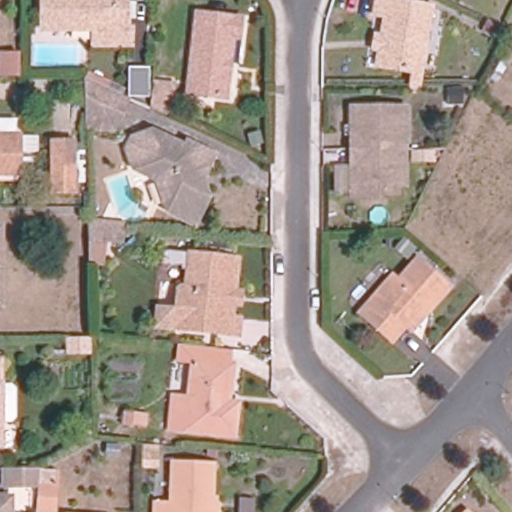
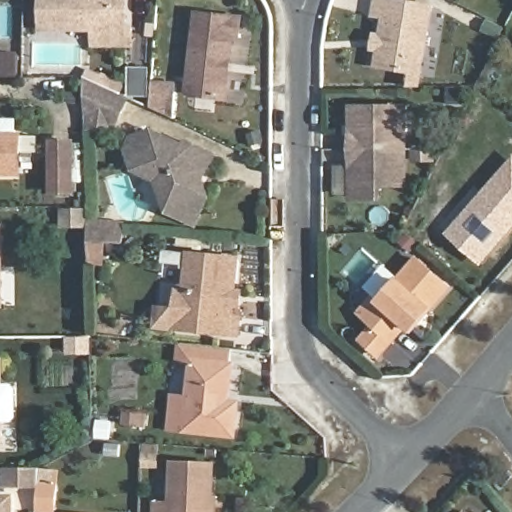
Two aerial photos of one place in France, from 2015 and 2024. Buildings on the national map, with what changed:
unchanged [(112,28),(122,28),(127,28),(127,45),(89,45),(90,29),(37,29),(37,0),(112,0),(112,28)]
unchanged [(410,87),(412,72),(377,66),(380,50),(382,36),(386,16),(375,15),(378,0),(395,0),(432,6),(421,74),(419,87),(410,87)]
unchanged [(231,64),(227,63),(226,71),(230,71),(226,98),(188,94),(197,14),(242,19),(240,38),(234,37),(231,64)]
unchanged [(488,20),(505,27),(498,39),(482,30),(488,20)]
unchanged [(4,77),(5,52),(24,52),(23,77),(4,77)]
unchanged [(86,130),(85,78),(130,99),(115,130),(86,130)]
unchanged [(152,83),(172,84),(170,117),(150,108),(152,83)]
unchanged [(352,150),(352,107),(406,107),(406,150),(352,150)]
unchanged [(0,174),(0,120),(16,120),(15,135),(21,136),(21,175),(0,174)]
unchanged [(170,206),(159,175),(136,164),(129,144),(134,134),(155,126),(186,141),(188,137),(215,150),(204,172),(200,170),(196,177),(204,180),(208,194),(201,208),(190,202),(186,210),(172,202),(170,206)]
unchanged [(48,194),(49,139),(75,140),(74,194),(48,194)]
unchanged [(406,185),(381,185),(381,198),(352,198),(352,150),(406,150),(406,185)]
new [(445,234),(512,156),(512,231),(481,266),(445,234)]
unchanged [(89,220),(125,224),(125,232),(124,242),(105,240),(104,262),(90,261),(89,229),(89,220)]
unchanged [(235,255),(230,286),(227,290),(227,296),(230,299),(228,312),(235,313),(234,330),(183,324),(185,315),(177,306),(172,305),(175,282),(176,281),(181,282),(185,249),(235,255)]
unchanged [(360,313),(375,296),(380,301),(399,280),(418,258),(450,286),(412,330),(407,325),(393,341),(360,313)]
unchanged [(66,337),(89,337),(89,353),(66,353),(66,337)]
unchanged [(1,360),(1,446),(0,446),(0,360),(1,360)]
unchanged [(233,365),(230,393),(225,392),(224,401),(229,401),(239,403),(235,436),(170,428),(174,396),(189,398),(194,360),(233,365)]
unchanged [(146,426),(140,426),(124,423),(125,412),(141,414),(147,415),(146,426)]
unchanged [(144,445),(155,445),(154,456),(142,456),(144,445)]
unchanged [(171,504),(173,460),(214,462),(212,512),(156,512),(156,503),(171,504)]
unchanged [(15,468),(34,468),(34,479),(15,479),(15,468)]
unchanged [(12,496),(12,512),(0,512),(0,497),(12,496)]

